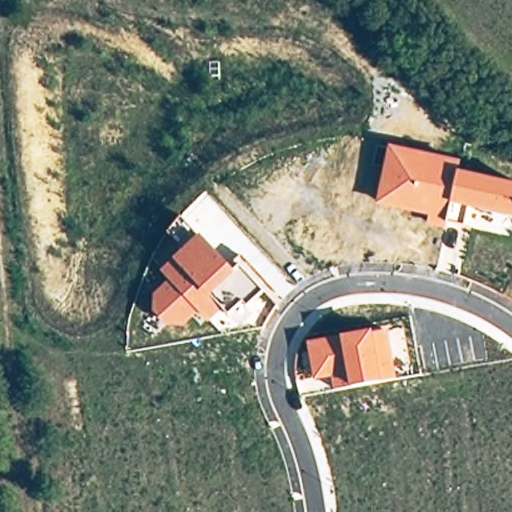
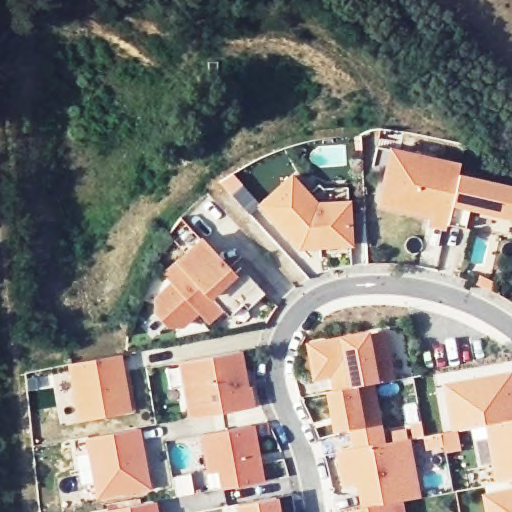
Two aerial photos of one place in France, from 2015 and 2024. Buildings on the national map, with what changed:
unchanged [(446,224),(445,228),(427,224),(429,215),(378,204),(385,176),(390,150),(400,153),(459,166),(457,174),(446,224)]
unchanged [(446,224),(457,174),(512,186),(512,218),(472,209),(467,208),(463,228),(446,224)]
new [(319,239),(307,239),(298,248),(260,205),(290,177),(307,195),(318,185),(324,188),(346,187),(347,203),(350,244),(320,246),(319,239)]
unchanged [(155,312),(155,297),(172,282),(163,273),(200,239),(231,273),(240,266),(263,293),(246,309),(242,304),(228,317),(220,309),(207,321),(198,310),(181,325),(166,325),(155,312)]
unchanged [(316,380),(310,346),(335,341),(353,338),(385,332),(394,382),(373,385),(336,392),(333,376),(316,380)]
new [(242,372),(245,387),(248,387),(251,408),(190,419),(180,362),(239,351),(242,372)]
new [(127,410),(79,419),(69,365),(117,356),(127,410)]
new [(512,389),(512,421),(488,425),(455,432),(446,387),(510,376),(512,389)]
new [(336,392),(373,385),(385,444),(356,450),(352,428),(338,431),(331,393),(336,392)]
new [(488,425),(512,421),(512,476),(498,479),(488,425)]
new [(251,425),(261,482),(222,489),(220,472),(209,474),(202,434),(251,425)]
new [(147,483),(97,492),(87,438),(137,428),(147,483)]
new [(441,434),(455,432),(458,451),(445,454),(441,434)]
new [(356,450),(385,444),(409,440),(420,499),(401,502),(365,509),(362,493),(372,491),(370,484),(346,488),(340,453),(356,450)]
new [(512,512),(489,512),(486,497),(512,492),(512,512)]
new [(237,512),(236,505),(275,498),(277,512),(237,512)]
new [(97,512),(152,502),(154,512),(97,512)]
new [(401,502),(403,512),(347,512),(365,509),(401,502)]

